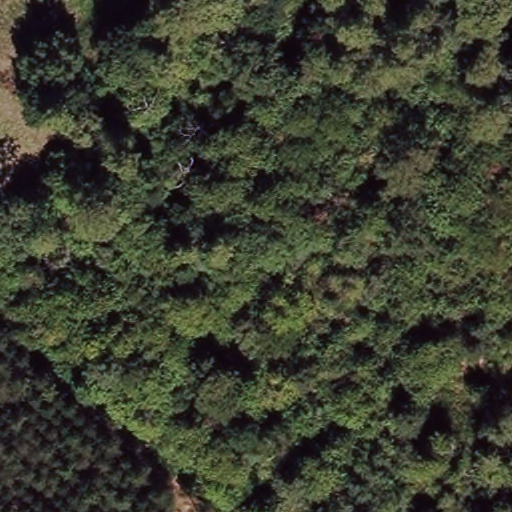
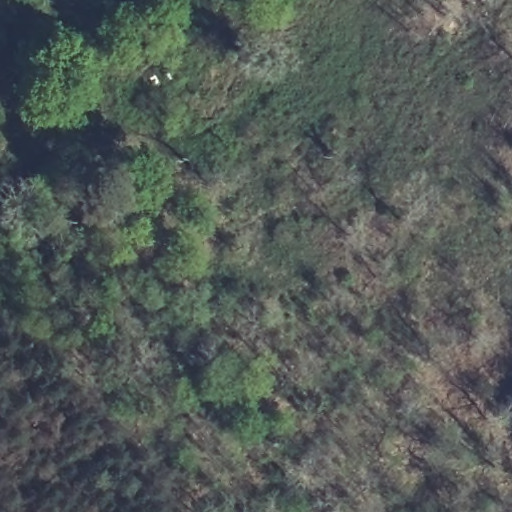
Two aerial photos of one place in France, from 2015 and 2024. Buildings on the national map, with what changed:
[]

